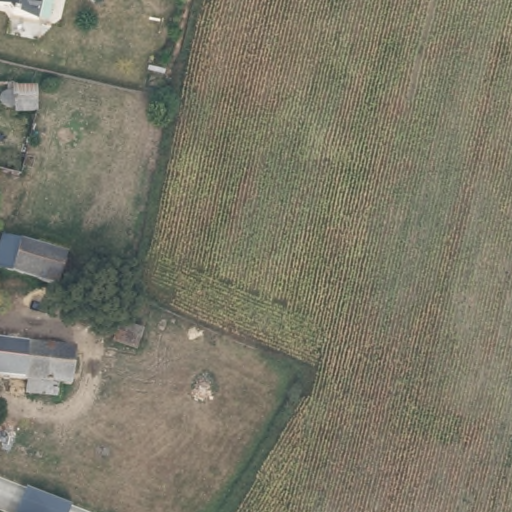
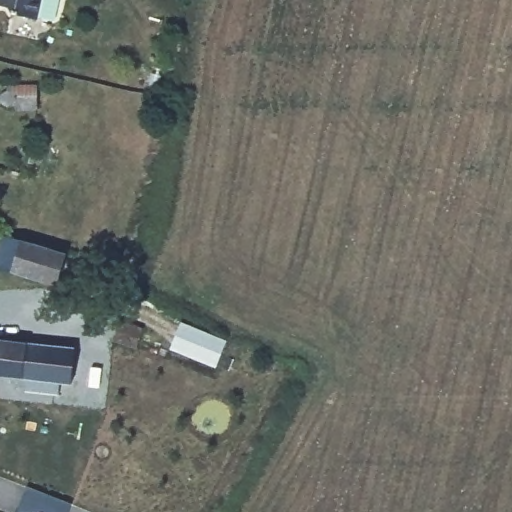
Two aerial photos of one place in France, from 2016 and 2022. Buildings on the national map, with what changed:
unchanged [(40,0),(36,12),(9,5),(6,0),(40,0)]
unchanged [(0,87),(0,69),(42,71),(42,91),(9,91),(0,87)]
unchanged [(0,264),(0,246),(2,234),(70,248),(65,270),(0,264)]
new [(226,339),(215,368),(170,349),(181,321),(226,339)]
unchanged [(113,340),(113,324),(140,326),(140,341),(113,340)]
unchanged [(49,394),(0,390),(0,380),(1,371),(0,371),(0,337),(76,345),(74,379),(50,376),(49,394)]

